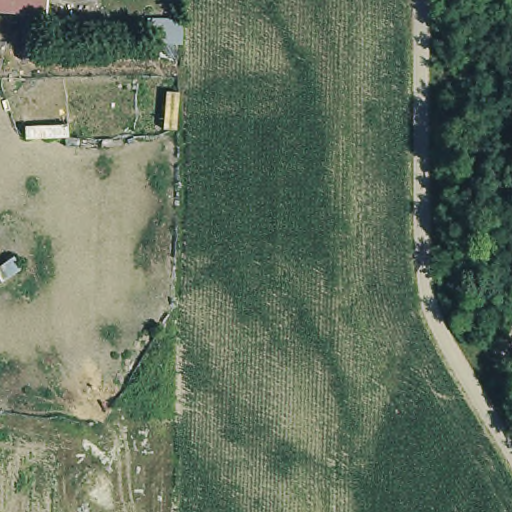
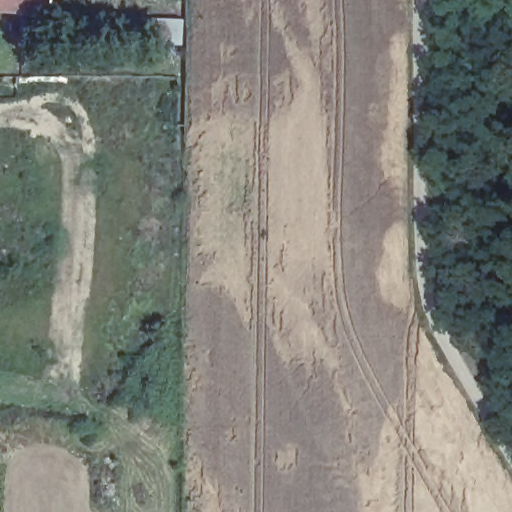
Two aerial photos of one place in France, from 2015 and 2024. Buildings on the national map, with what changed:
unchanged [(46,0),(42,15),(0,12),(0,0),(46,0)]

